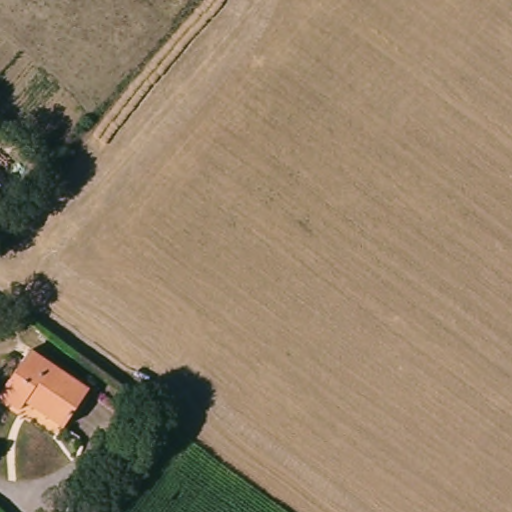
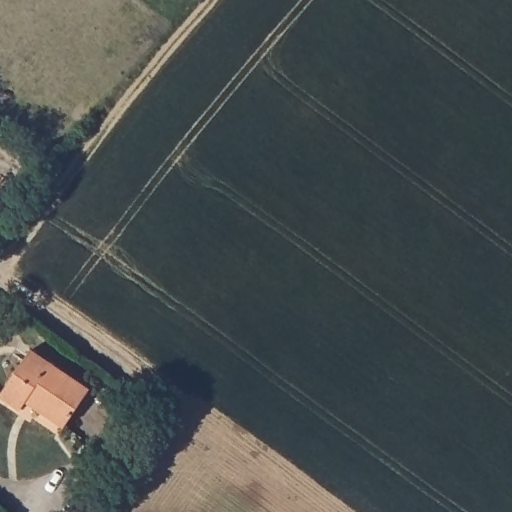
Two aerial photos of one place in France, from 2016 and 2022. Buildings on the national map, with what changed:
unchanged [(64,425),(27,400),(20,410),(0,395),(0,393),(29,349),(87,387),(64,425)]

